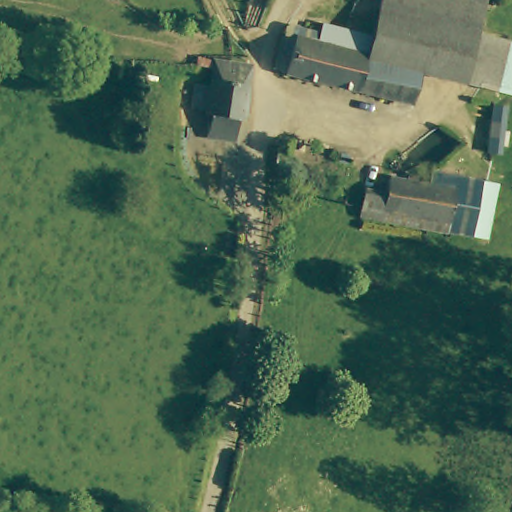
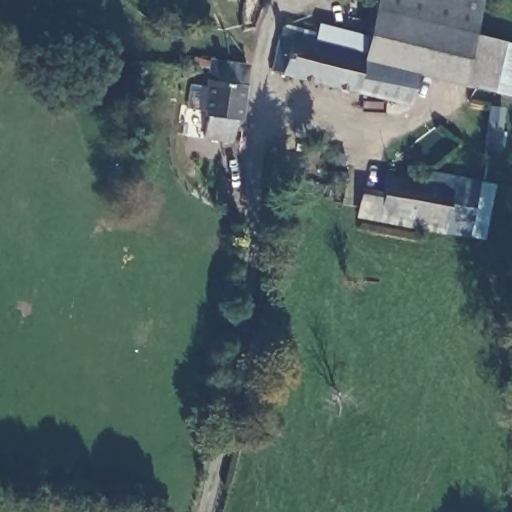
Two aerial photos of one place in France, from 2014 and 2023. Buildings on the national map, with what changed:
unchanged [(474,30),(377,7),(379,0),(481,0),(474,30)]
unchanged [(364,52),(365,51),(370,32),(376,11),(377,7),(474,30),(504,37),(493,80),(491,86),(473,82),(363,55),(364,52)]
unchanged [(319,30),(322,20),(370,32),(365,51),(317,39),(319,30)]
unchanged [(271,67),(280,32),(283,34),(286,22),(319,30),(317,39),(365,51),(364,52),(363,55),(363,58),(417,72),(410,101),(271,67)]
unchanged [(512,91),(491,86),(493,80),(504,37),(512,39),(512,91)]
unchanged [(209,66),(246,70),(238,124),(234,123),(231,144),(203,141),(206,117),(202,117),(202,112),(188,111),(191,87),(206,88),(208,70),(209,66)]
unchanged [(358,210),(363,187),(386,192),(389,172),(432,180),(434,167),(459,172),(447,227),(358,210)]
unchanged [(499,179),(488,236),(447,227),(459,172),(499,179)]

